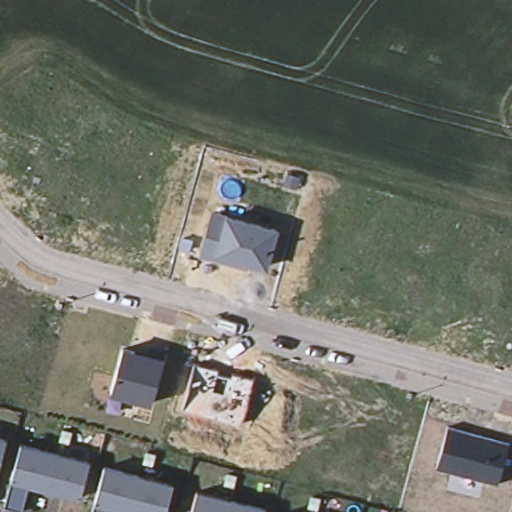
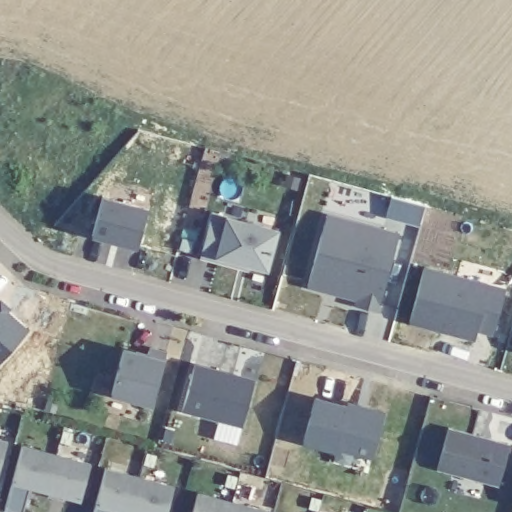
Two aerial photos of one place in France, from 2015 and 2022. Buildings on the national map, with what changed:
new [(92,235),(103,196),(148,207),(137,249),(92,235)]
new [(425,207),(420,228),(387,217),(391,199),(425,207)]
unchanged [(228,214),(227,216),(279,229),(268,271),(247,266),(247,269),(197,256),(212,209),(228,214)]
new [(356,305),(358,298),(336,292),(337,287),(323,284),(322,288),(307,284),(325,215),(403,237),(401,242),(396,240),(376,311),(356,305)]
new [(507,291),(495,338),(477,333),(475,341),(409,325),(423,270),(507,291)]
new [(0,364),(0,307),(29,332),(0,364)]
unchanged [(125,347),(167,360),(153,408),(111,396),(125,347)]
unchanged [(254,378),(242,425),(182,408),(195,360),(254,378)]
new [(348,410),(349,405),(385,415),(375,464),(353,458),(352,467),(333,463),(335,457),(303,448),(315,400),(348,410)]
unchanged [(509,443),(498,485),(435,468),(447,425),(509,443)]
unchanged [(0,481),(0,440),(12,443),(0,481)]
unchanged [(23,445),(93,465),(82,503),(32,490),(26,512),(17,512),(4,508),(23,445)]
unchanged [(106,468),(178,487),(171,512),(92,512),(106,468)]
unchanged [(268,511),(268,512),(191,512),(197,490),(268,511)]

